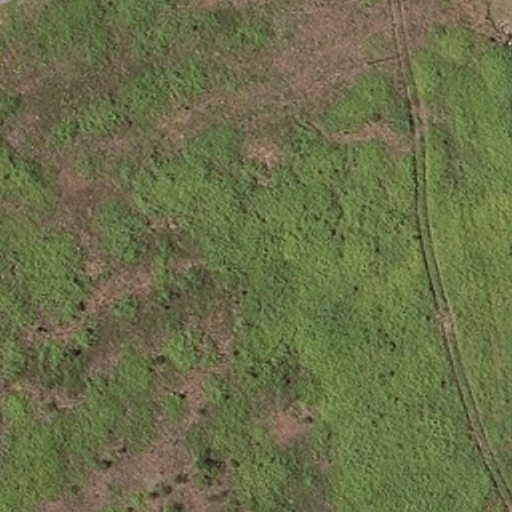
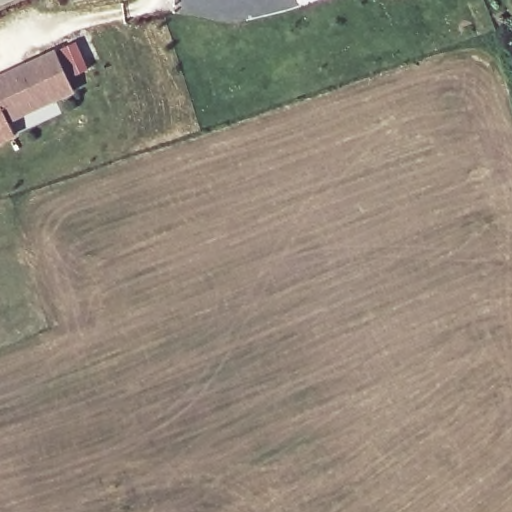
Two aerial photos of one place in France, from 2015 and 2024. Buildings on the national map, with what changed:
new [(75,90),(60,97),(8,121),(0,103),(0,76),(42,57),(56,50),(75,90)]

